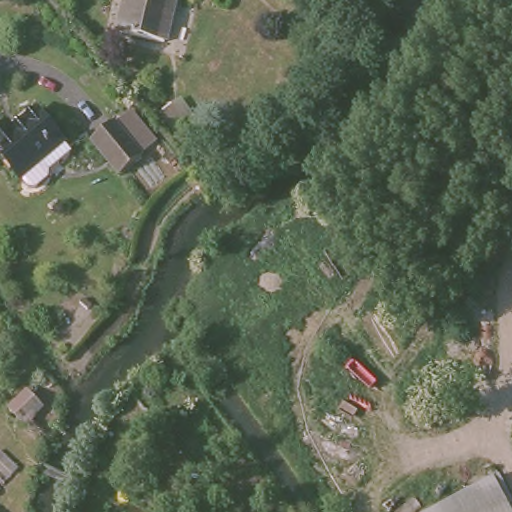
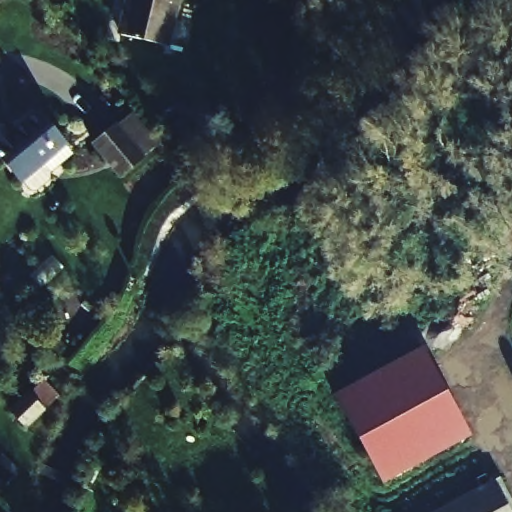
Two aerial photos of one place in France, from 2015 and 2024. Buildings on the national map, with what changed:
unchanged [(129,35),(136,0),(182,0),(173,45),(129,35)]
unchanged [(0,157),(0,138),(10,127),(15,131),(38,107),(70,135),(48,160),(58,168),(59,176),(50,186),(41,186),(33,179),(29,182),(0,157)]
unchanged [(103,142),(122,121),(152,150),(134,169),(103,142)]
new [(383,483),(334,393),(424,345),(472,435),(383,483)]
unchanged [(12,410),(29,392),(46,408),(29,427),(12,410)]
unchanged [(437,512),(494,478),(512,511),(512,512),(437,512)]

